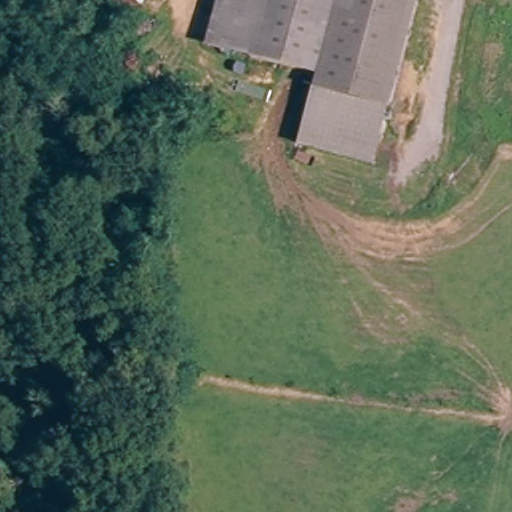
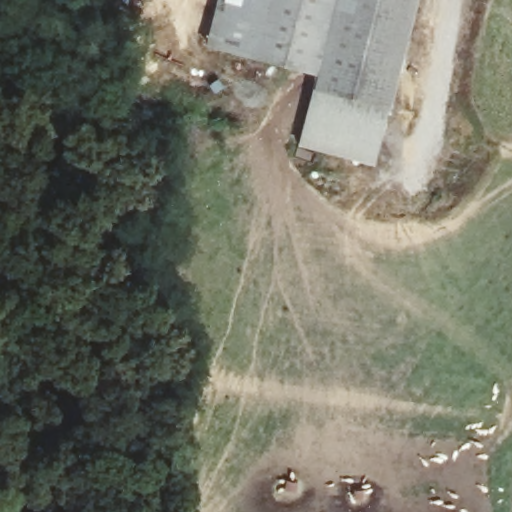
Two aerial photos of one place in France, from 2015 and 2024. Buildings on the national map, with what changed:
unchanged [(204,41),(215,0),(259,0),(244,52),(204,41)]
unchanged [(244,52),(259,0),(336,0),(314,73),(244,52)]
unchanged [(384,113),(338,100),(309,92),(314,73),(336,0),(413,0),(384,113)]
unchanged [(295,143),(309,92),(338,100),(384,113),(370,167),(295,143)]

